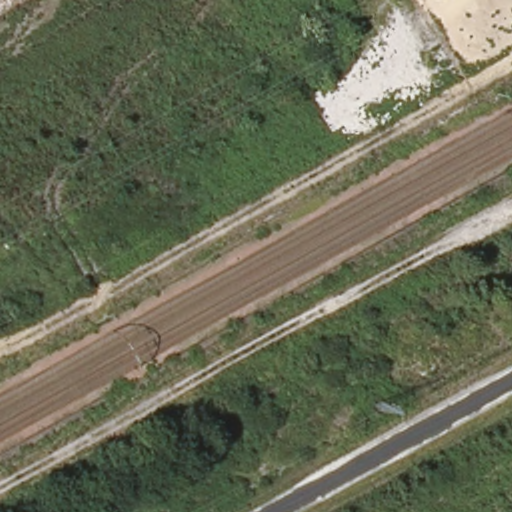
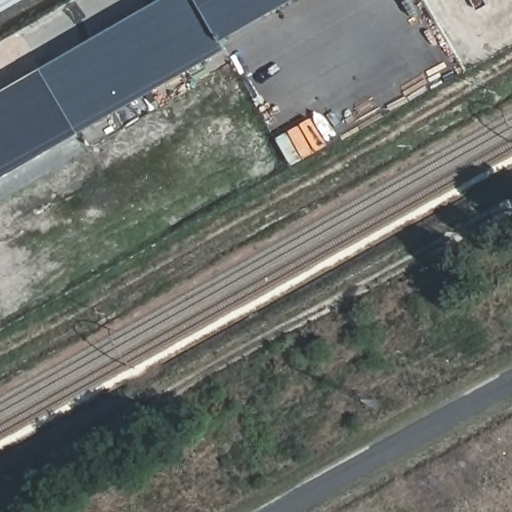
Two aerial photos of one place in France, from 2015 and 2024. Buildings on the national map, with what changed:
new [(0,13),(0,0),(22,0),(0,13)]
new [(227,52),(80,134),(45,71),(172,0),(300,0),(222,44),(227,52)]
new [(45,71),(80,134),(0,182),(0,97),(45,71)]

